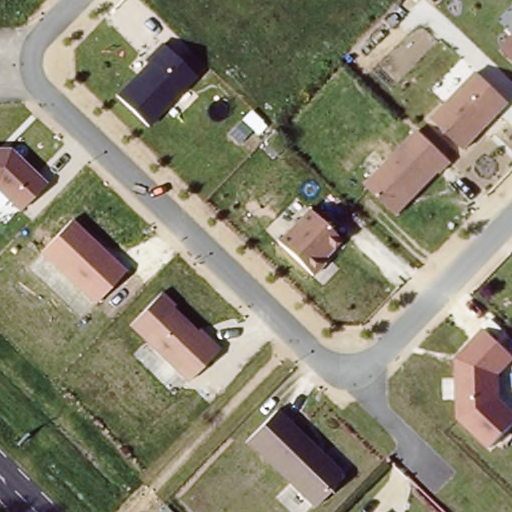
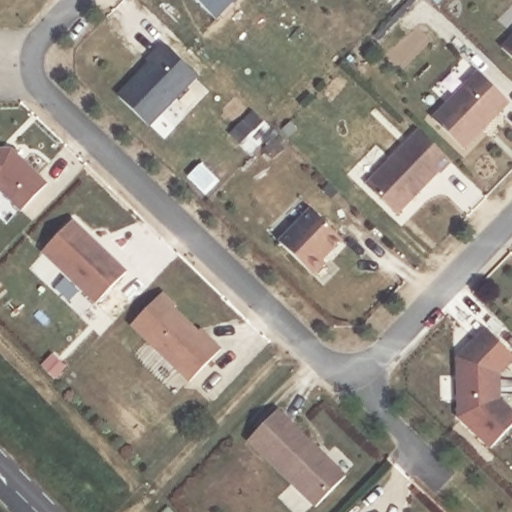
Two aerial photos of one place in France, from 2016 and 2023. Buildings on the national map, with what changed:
new [(200,0),(236,0),(218,19),(200,0)]
unchanged [(512,35),(512,59),(500,48),(512,35)]
unchanged [(198,75),(144,128),(116,94),(148,63),(145,58),(162,43),(198,75)]
unchanged [(510,103),(464,149),(431,117),(476,71),(510,103)]
unchanged [(451,162),(398,215),(364,184),(418,129),(451,162)]
unchanged [(20,209),(0,189),(0,146),(10,146),(48,183),(20,209)]
unchanged [(343,241),(313,273),(277,242),(308,208),(343,241)]
unchanged [(40,254),(72,222),(126,272),(93,303),(40,254)]
unchanged [(163,292),(221,348),(186,382),(129,327),(163,292)]
unchanged [(512,364),(499,379),(499,401),(512,412),(512,425),(489,449),(456,416),(454,357),(483,326),(512,357),(512,364)]
unchanged [(279,408),(346,474),(314,507),(246,442),(279,408)]

